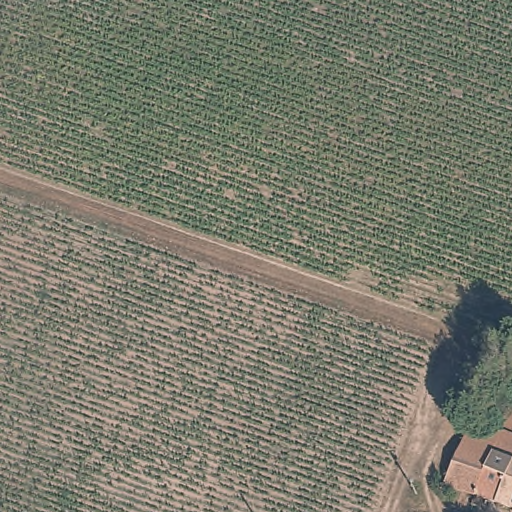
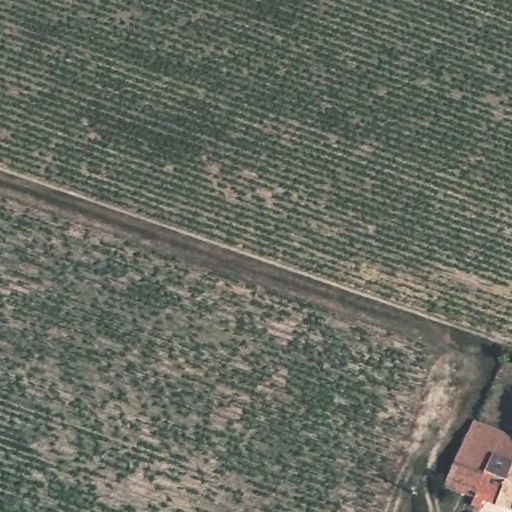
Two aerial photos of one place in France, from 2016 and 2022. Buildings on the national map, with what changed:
unchanged [(475,422),(512,435),(512,508),(453,489),(475,422)]

